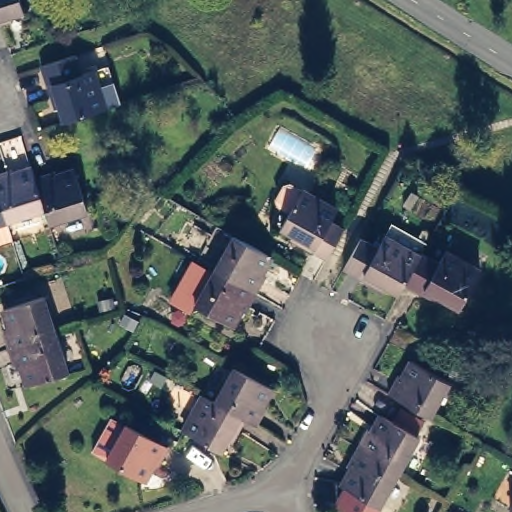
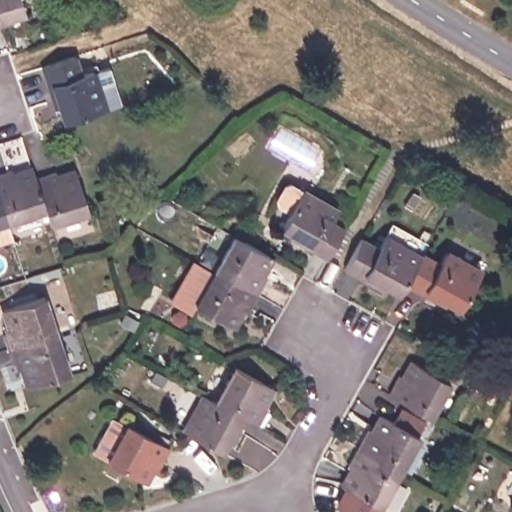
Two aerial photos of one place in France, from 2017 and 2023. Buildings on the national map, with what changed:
unchanged [(20,0),(23,12),(5,17),(7,22),(0,24),(0,0),(20,0)]
unchanged [(57,102),(53,104),(47,85),(41,65),(75,55),(82,74),(93,70),(99,86),(115,81),(122,103),(106,108),(63,122),(57,102)]
unchanged [(0,200),(0,174),(12,170),(12,174),(32,167),(35,179),(45,209),(7,221),(0,200)]
unchanged [(45,209),(35,179),(55,172),(55,176),(75,170),(88,211),(50,224),(45,209)]
unchanged [(327,259),(295,241),(298,237),(280,227),(290,211),(278,205),(277,199),(284,185),(290,184),(302,190),(337,210),(330,221),(343,228),(327,259)]
unchanged [(12,238),(0,242),(0,200),(7,221),(12,238)]
unchanged [(379,283),(343,263),(360,233),(378,242),(384,231),(420,250),(405,278),(399,288),(387,281),(384,286),(379,283)]
unchanged [(277,256),(266,275),(270,277),(261,294),(219,270),(239,235),(277,256)]
unchanged [(440,298),(405,278),(420,250),(422,246),(440,256),(445,245),(481,266),(460,302),(448,296),(445,301),(440,298)]
unchanged [(177,299),(188,281),(200,260),(219,270),(261,294),(252,311),(247,308),(237,326),(200,305),(197,311),(177,299)]
unchanged [(4,330),(8,328),(2,308),(43,295),(55,333),(10,348),(4,330)]
unchanged [(102,311),(99,303),(112,298),(115,307),(102,311)]
unchanged [(55,333),(68,372),(27,385),(20,366),(17,368),(10,348),(55,333)]
unchanged [(398,376),(402,378),(413,361),(450,382),(430,417),(388,393),(398,376)]
unchanged [(267,383),(257,402),(260,405),(251,421),(238,414),(209,398),(229,362),(267,383)]
unchanged [(180,387),(172,401),(145,385),(152,372),(180,387)]
unchanged [(209,398),(238,414),(228,431),(224,429),(215,445),(177,425),(197,390),(209,398)]
unchanged [(357,448),(367,430),(372,432),(382,415),(394,422),(402,408),(425,421),(417,436),(419,438),(400,471),(357,448)]
unchanged [(168,442),(157,460),(154,458),(145,475),(107,454),(127,418),(168,442)]
unchanged [(380,506),(342,485),(352,468),(347,465),(357,448),(400,471),(380,506)]
unchanged [(512,500),(512,505),(510,503),(512,500)]

